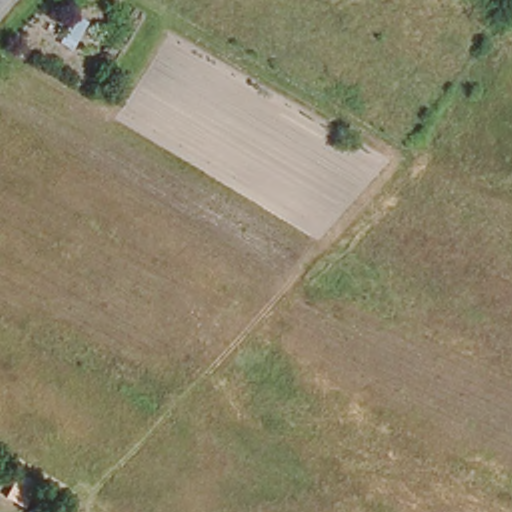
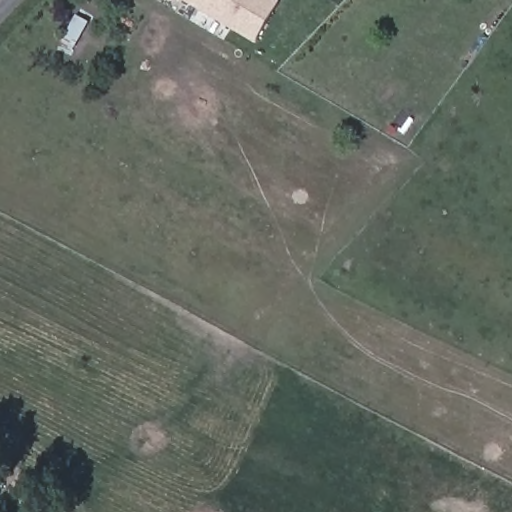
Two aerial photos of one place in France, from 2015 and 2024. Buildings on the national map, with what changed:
new [(249,31),(245,39),(180,0),(278,0),(281,2),(260,38),(249,31)]
new [(20,473),(36,483),(33,489),(23,506),(6,496),(17,479),(20,473)]

